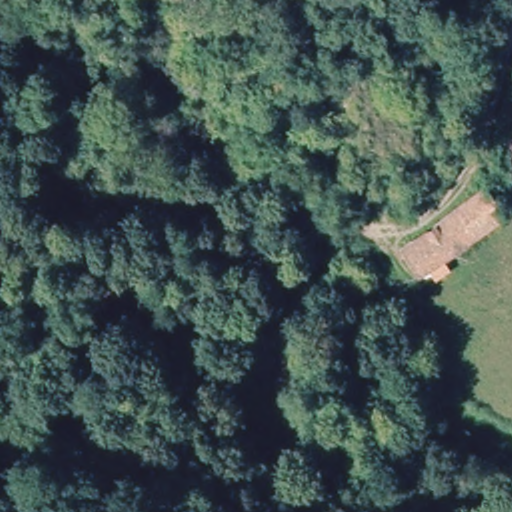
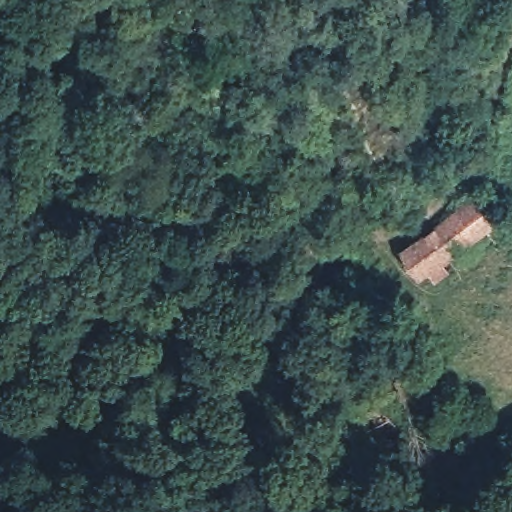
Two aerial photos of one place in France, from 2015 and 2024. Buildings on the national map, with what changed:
unchanged [(400,250),(483,193),(503,220),(418,280),(396,254),(400,250)]

